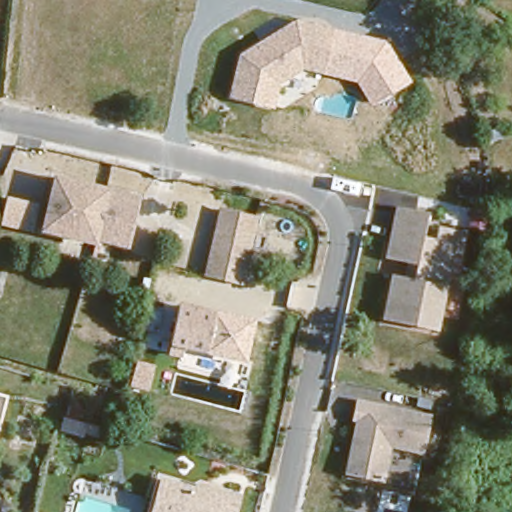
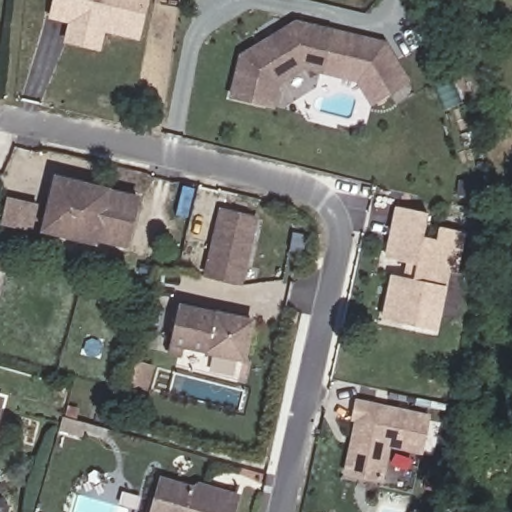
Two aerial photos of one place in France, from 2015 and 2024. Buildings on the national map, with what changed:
new [(66,24),(47,19),(51,0),(148,0),(138,41),(104,32),(100,52),(62,42),(66,24)]
unchanged [(241,53),(295,21),(333,30),(332,36),(323,76),(303,70),(281,84),(275,107),(231,98),(241,53)]
unchanged [(332,36),(333,30),(386,42),(412,82),(372,106),(356,82),(323,76),(332,36)]
unchanged [(138,190),(133,241),(102,237),(102,241),(47,236),(53,182),(138,190)]
unchanged [(31,234),(0,224),(8,196),(40,203),(31,234)]
unchanged [(242,282),(221,277),(208,274),(210,267),(223,210),(257,218),(242,282)]
unchanged [(395,305),(400,279),(419,283),(422,268),(394,262),(405,212),(434,217),(429,241),(442,244),(445,231),(469,236),(460,277),(453,275),(440,334),(410,327),(390,323),(395,305)]
unchanged [(210,347),(204,346),(185,341),(185,343),(182,351),(172,348),(174,341),(174,339),(173,338),(181,300),(210,307),(218,308),(210,347)]
new [(218,308),(256,318),(248,362),(210,347),(218,308)]
unchanged [(421,447),(389,440),(381,475),(346,467),(352,438),(358,440),(360,432),(353,432),(357,415),(353,413),(357,396),(429,411),(421,447)]
unchanged [(194,490),(200,487),(206,488),(210,494),(227,498),(229,494),(237,496),(244,497),(240,512),(153,512),(161,481),(194,490)]

